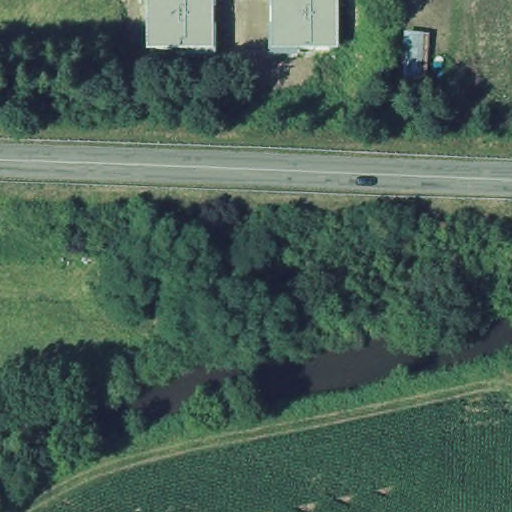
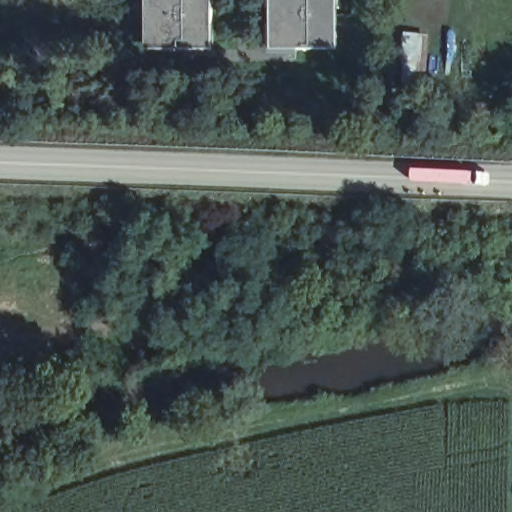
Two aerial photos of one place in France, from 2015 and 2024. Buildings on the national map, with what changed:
unchanged [(211,0),(211,51),(145,50),(145,0),(211,0)]
unchanged [(335,0),(335,49),(268,51),(268,0),(335,0)]
unchanged [(402,34),(427,35),(424,82),(399,80),(402,34)]

